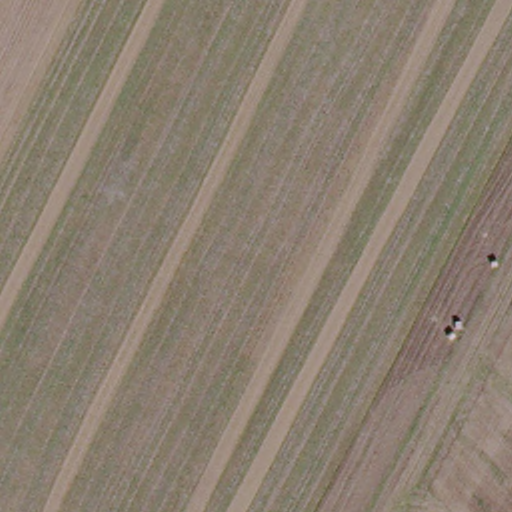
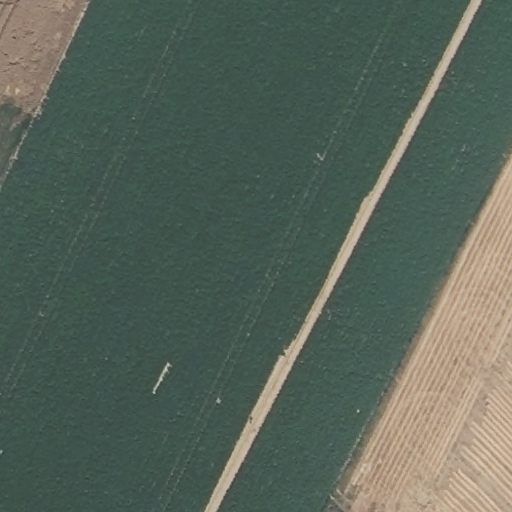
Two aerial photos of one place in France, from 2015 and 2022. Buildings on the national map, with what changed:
[]

